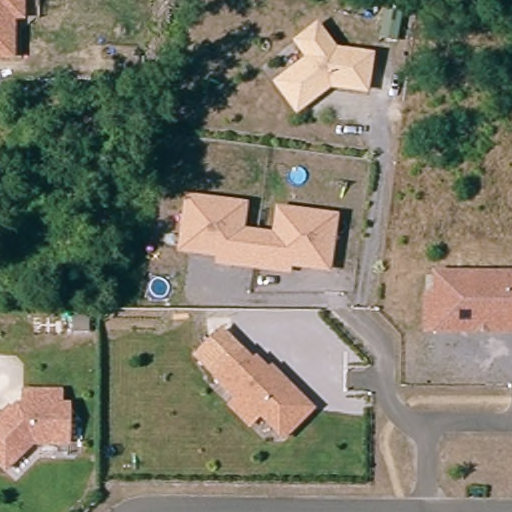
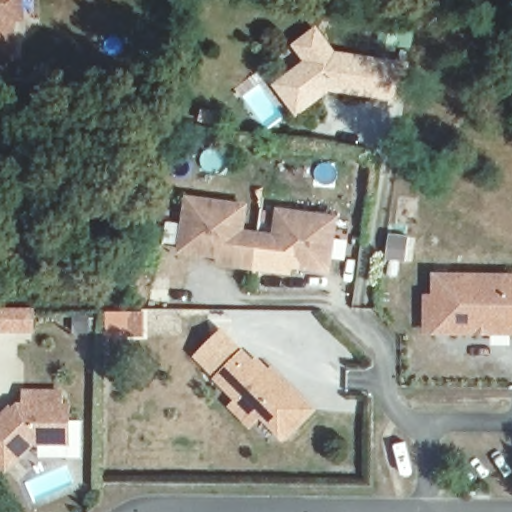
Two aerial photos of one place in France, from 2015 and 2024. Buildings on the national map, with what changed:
unchanged [(24,0),(24,21),(15,22),(15,61),(0,61),(0,0),(24,0)]
unchanged [(303,61),(290,45),(315,25),(336,51),(372,56),(367,95),(330,91),(295,116),(272,83),(303,61)]
unchanged [(247,204),(245,228),(271,232),(275,208),(336,215),(330,273),(291,269),(290,274),(215,264),(215,258),(176,253),(184,195),(247,204)]
unchanged [(427,295),(436,295),(436,274),(512,276),(512,331),(458,330),(435,329),(427,329),(427,317),(427,295)]
new [(0,334),(0,308),(35,308),(35,334),(0,334)]
unchanged [(222,327),(253,358),(257,355),(269,367),(272,364),(317,409),(284,443),(258,419),(249,427),(226,405),(234,398),(194,356),(222,327)]
unchanged [(28,438),(1,464),(0,462),(0,409),(5,404),(9,400),(20,400),(20,387),(56,388),(56,402),(64,402),(64,416),(63,439),(63,450),(34,449),(28,438)]

